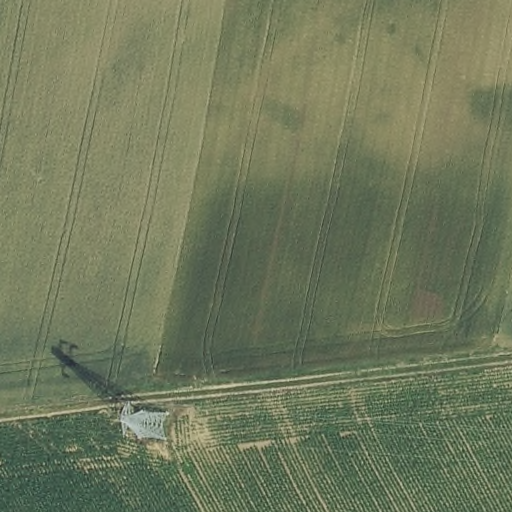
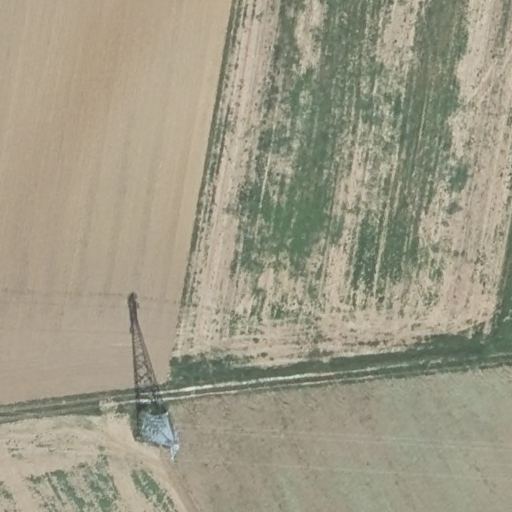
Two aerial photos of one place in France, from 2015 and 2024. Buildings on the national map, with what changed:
[]

